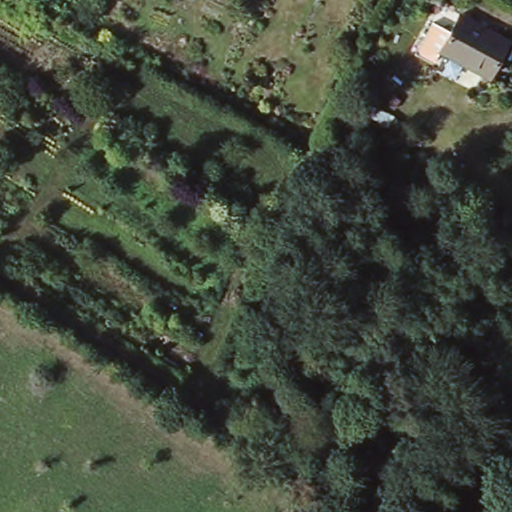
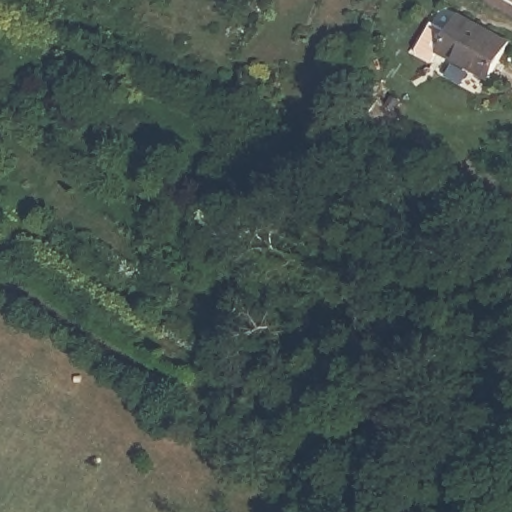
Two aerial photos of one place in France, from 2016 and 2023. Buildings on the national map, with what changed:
unchanged [(512,49),(496,80),(446,55),(463,19),(512,43),(512,49)]

